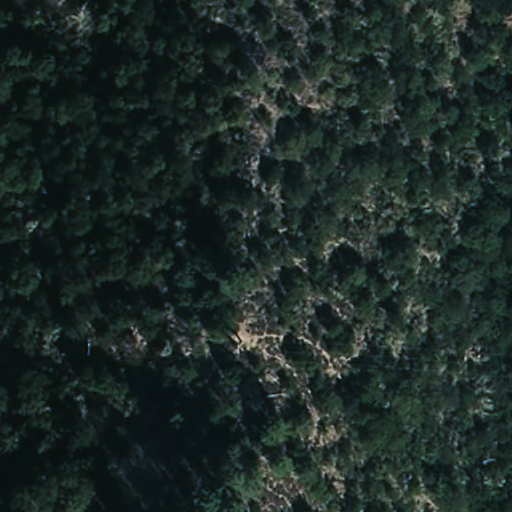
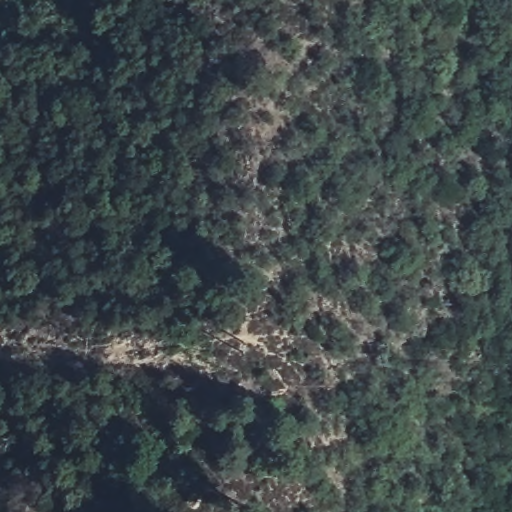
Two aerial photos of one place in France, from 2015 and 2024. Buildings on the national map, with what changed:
[]

